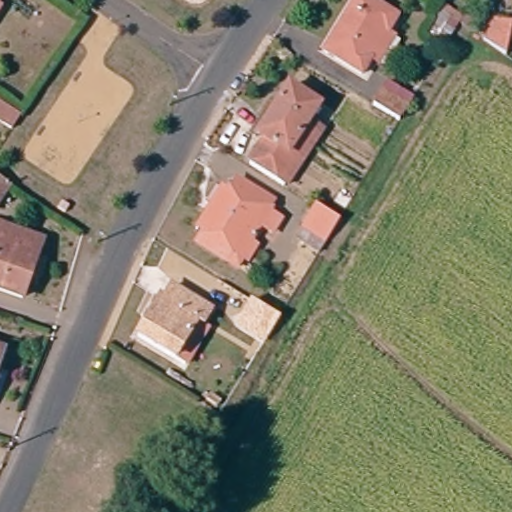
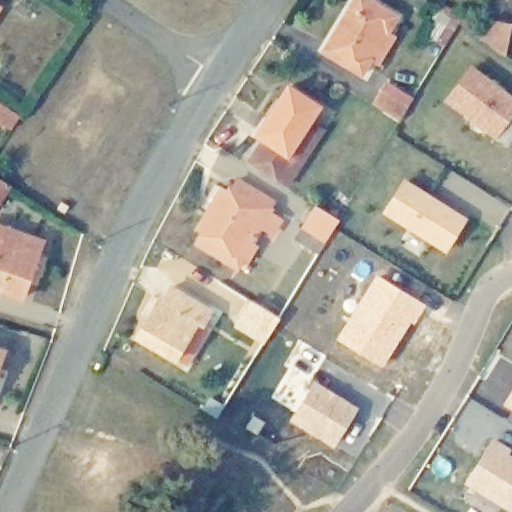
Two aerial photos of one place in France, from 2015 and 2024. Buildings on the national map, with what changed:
unchanged [(381,62),(373,55),(362,71),(328,45),(356,0),(370,0),(397,18),(389,30),(398,36),(381,62)]
unchanged [(484,36),(488,15),(512,19),(506,53),(484,36)]
new [(496,139),(444,100),(471,64),(512,96),(512,116),(496,139)]
unchanged [(392,82),(419,99),(412,110),(404,124),(378,104),(385,93),(392,82)]
unchanged [(262,136),(257,131),(289,85),(317,105),(286,152),(292,156),(276,177),(248,158),(262,136)]
unchanged [(0,120),(0,107),(6,97),(31,116),(20,134),(0,120)]
unchanged [(0,169),(15,181),(0,204),(0,169)]
new [(381,212),(403,176),(468,217),(447,253),(381,212)]
unchanged [(244,265),(236,258),(227,270),(196,247),(235,180),(274,204),(269,214),(281,222),(272,235),(260,226),(253,238),(259,244),(244,265)]
unchanged [(299,231),(313,209),(338,225),(324,248),(299,231)]
unchanged [(26,294),(0,289),(0,231),(35,239),(26,294)]
new [(377,274),(426,305),(414,324),(412,323),(383,368),(335,340),(377,274)]
unchanged [(204,325),(199,323),(177,359),(139,333),(160,298),(164,301),(174,287),(212,313),(204,325)]
unchanged [(275,321),(265,338),(235,318),(244,303),(275,321)]
unchanged [(0,355),(1,356),(0,359),(0,355)]
new [(313,379),(359,407),(334,448),(289,421),(313,379)]
new [(512,388),(512,409),(503,403),(512,388)]
new [(491,435),(512,446),(508,453),(512,455),(512,512),(511,512),(464,483),(491,435)]

